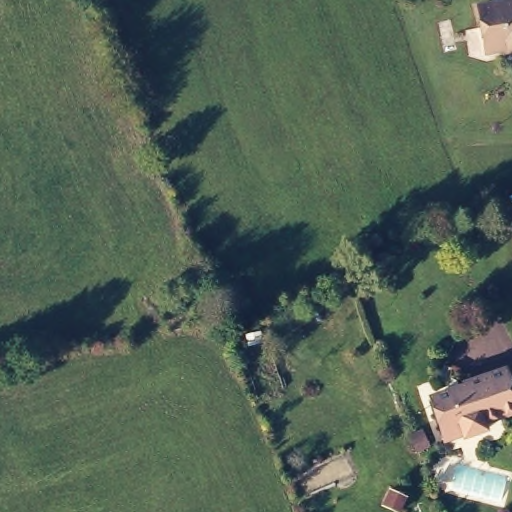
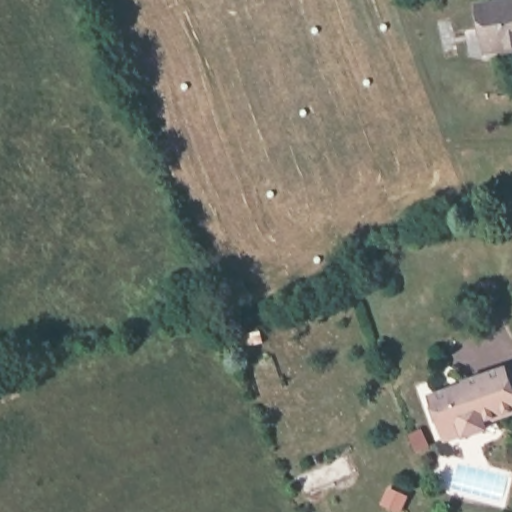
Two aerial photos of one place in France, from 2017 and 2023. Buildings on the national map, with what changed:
unchanged [(490,48),(482,2),(498,0),(512,0),(512,44),(490,48)]
unchanged [(431,388),(452,381),(466,376),(465,374),(505,360),(512,382),(512,403),(483,413),(485,420),(465,427),(446,433),(442,421),(431,388)]

